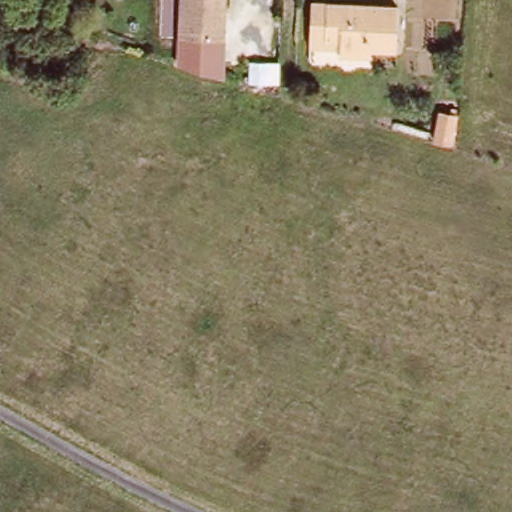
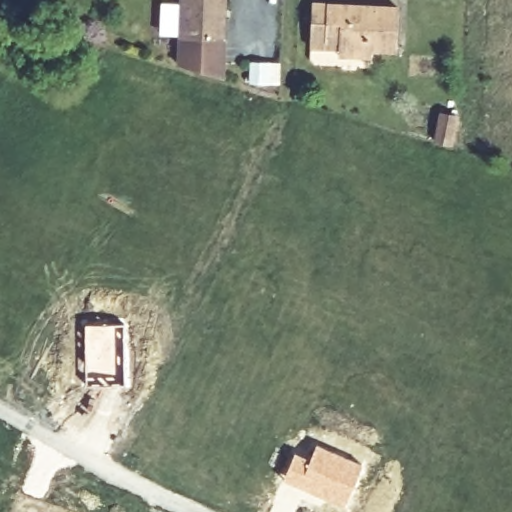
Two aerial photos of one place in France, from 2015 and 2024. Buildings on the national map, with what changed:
unchanged [(227,0),(223,70),(177,62),(181,0),(227,0)]
unchanged [(340,59),(340,50),(340,42),(310,40),(312,4),(400,8),(397,53),(371,51),(370,60),(340,59)]
unchanged [(459,115),(452,146),(432,142),(437,112),(459,115)]
new [(117,323),(115,376),(84,375),(84,323),(117,323)]
new [(293,451),(309,458),(315,443),(362,465),(342,508),(280,480),(293,451)]

